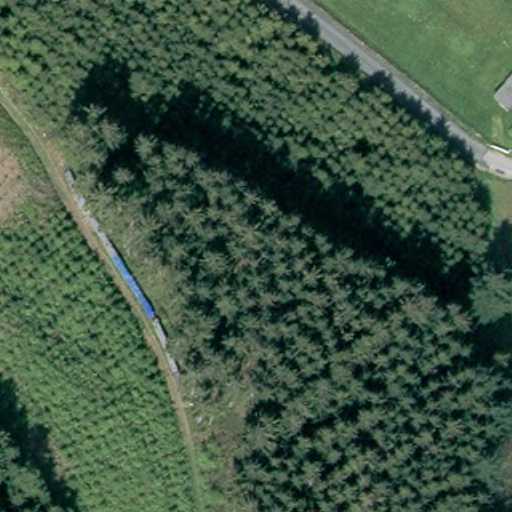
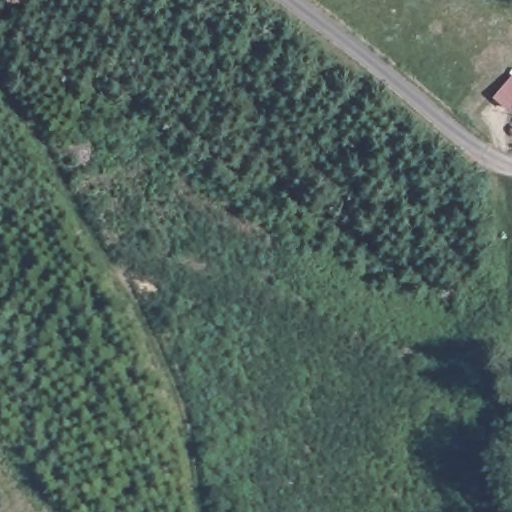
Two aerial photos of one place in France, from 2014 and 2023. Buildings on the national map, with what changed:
unchanged [(512,77),(512,90),(505,84),(512,77)]

